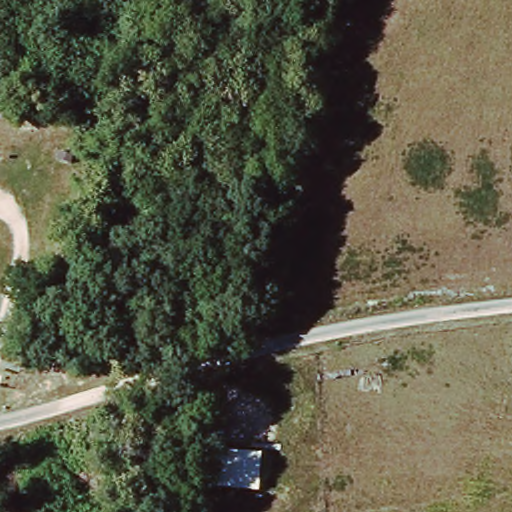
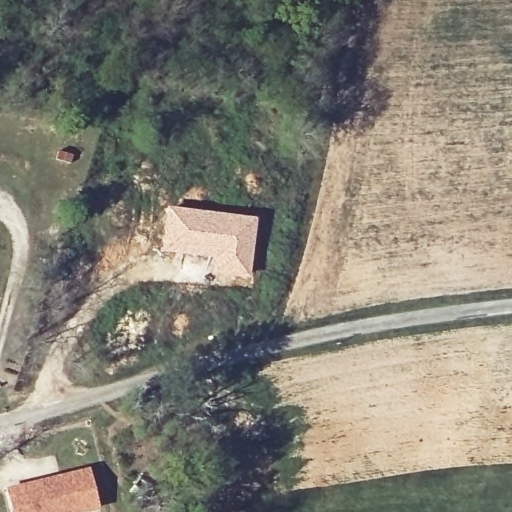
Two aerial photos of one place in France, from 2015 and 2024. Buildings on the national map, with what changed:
new [(165,207),(258,217),(249,280),(206,274),(209,260),(160,252),(165,207)]
unchanged [(209,486),(212,448),(260,452),(259,491),(209,486)]
new [(6,488),(88,469),(99,511),(92,512),(12,512),(6,488)]

